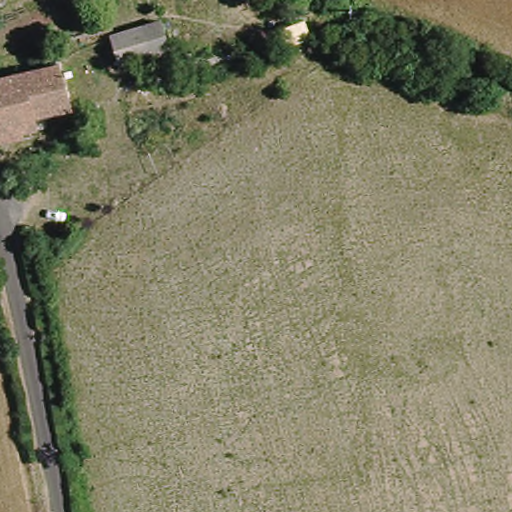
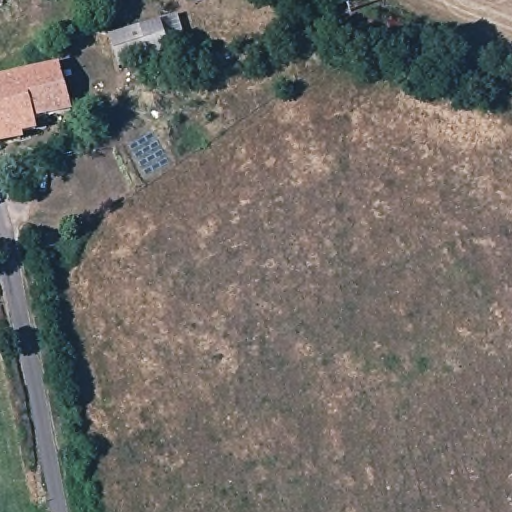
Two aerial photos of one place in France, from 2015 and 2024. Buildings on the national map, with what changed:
unchanged [(106,35),(138,27),(160,22),(168,52),(146,57),(117,65),(111,49),(106,35)]
unchanged [(42,62),(51,60),(62,104),(38,109),(39,121),(0,130),(0,72),(42,62)]

